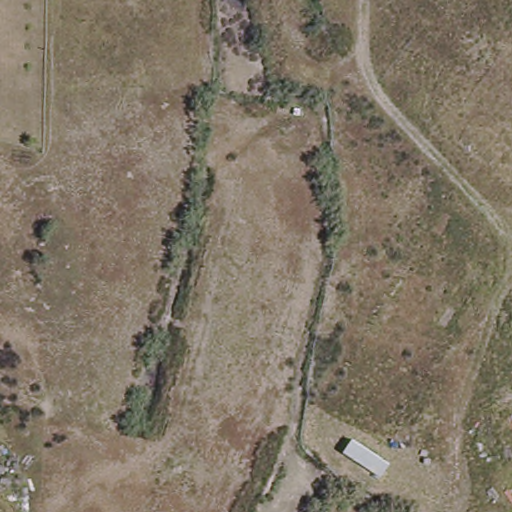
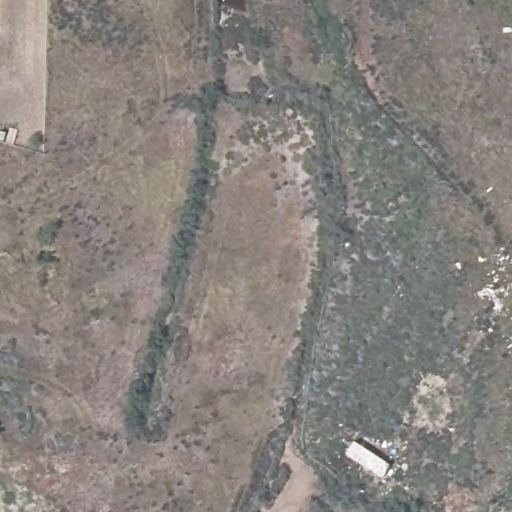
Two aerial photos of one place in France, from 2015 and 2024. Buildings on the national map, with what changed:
[]

